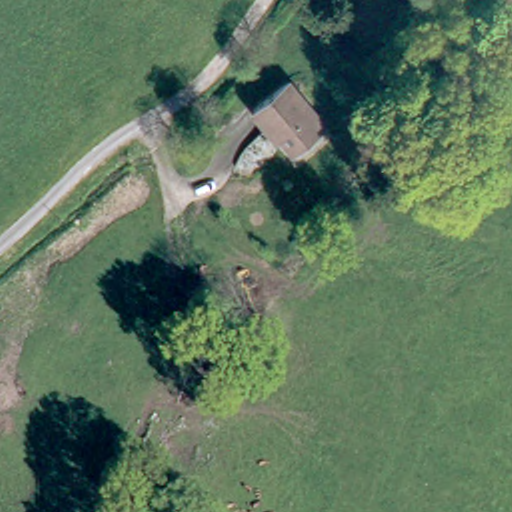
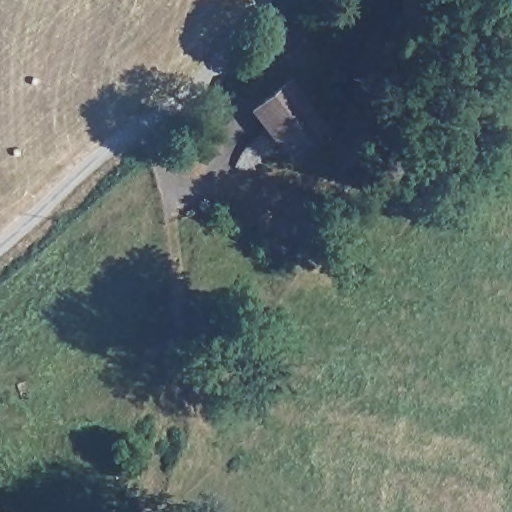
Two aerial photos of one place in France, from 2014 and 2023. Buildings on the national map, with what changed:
unchanged [(326,130),(288,156),(253,106),(290,81),(326,130)]

